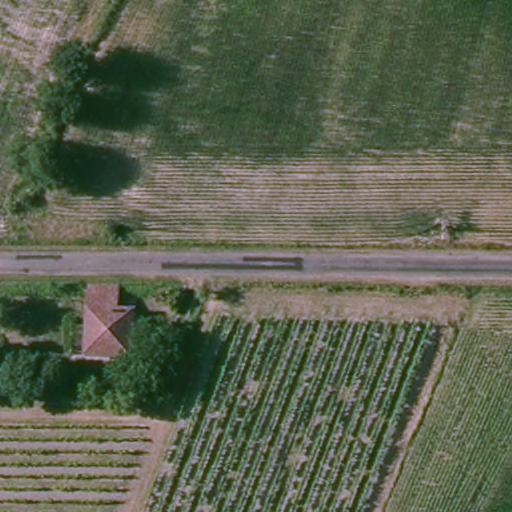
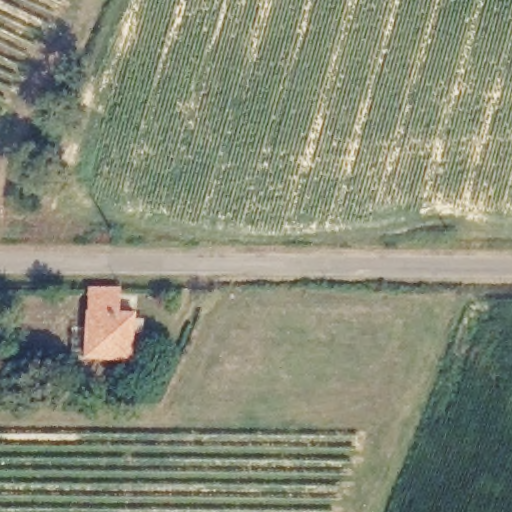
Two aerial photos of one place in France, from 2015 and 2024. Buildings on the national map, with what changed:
unchanged [(129,353),(82,353),(84,303),(84,285),(117,285),(116,304),(130,304),(129,353)]

